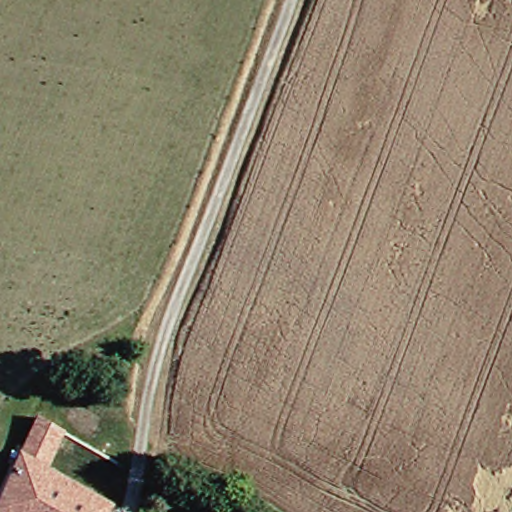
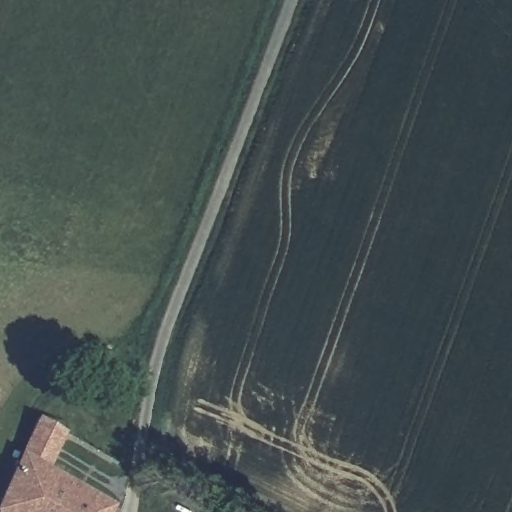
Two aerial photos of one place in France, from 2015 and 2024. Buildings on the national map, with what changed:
unchanged [(44,417),(58,425),(70,401),(83,408),(56,469),(28,452),(44,417)]
unchanged [(44,512),(1,512),(28,452),(56,469),(60,472),(44,512)]
unchanged [(122,505),(118,512),(44,512),(60,472),(122,505)]

